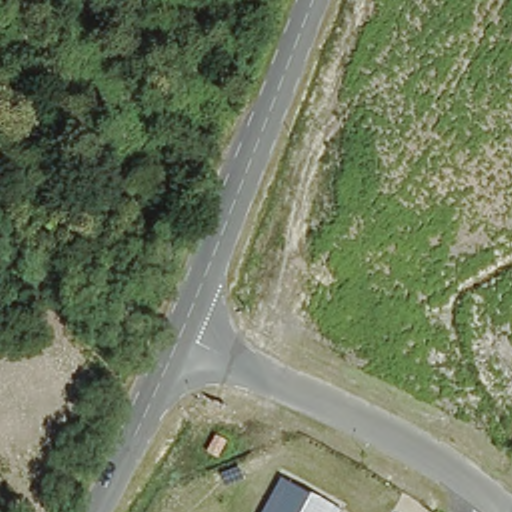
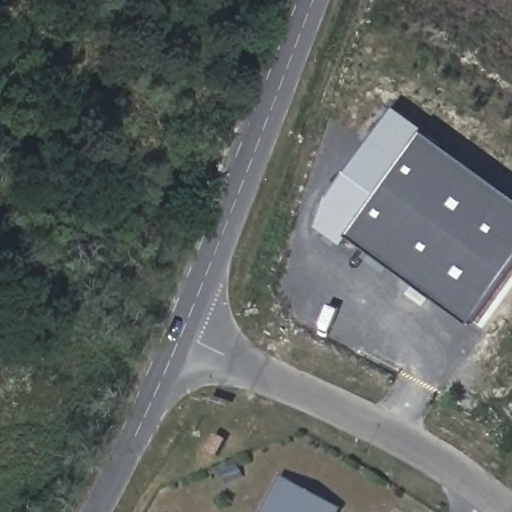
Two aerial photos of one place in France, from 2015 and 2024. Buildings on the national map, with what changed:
new [(512,278),(476,328),(354,240),(348,248),(323,230),(334,199),(369,150),(398,110),(512,192),(512,278)]
unchanged [(347,511),(346,512),(263,512),(282,479),(347,511)]

